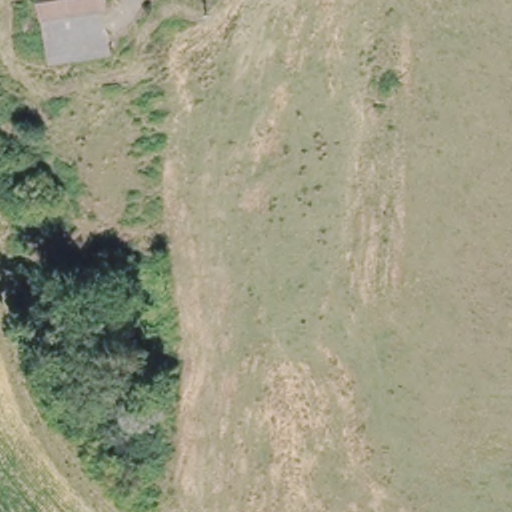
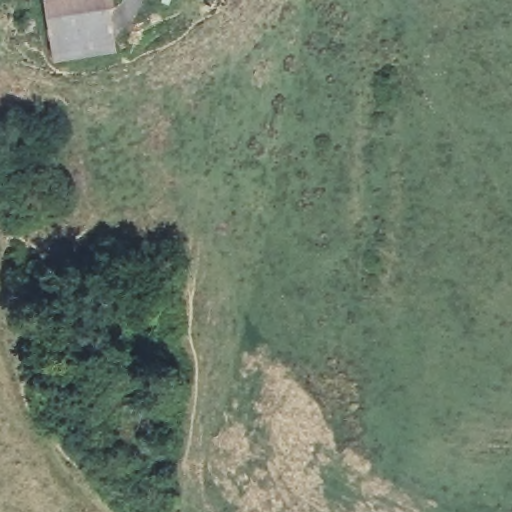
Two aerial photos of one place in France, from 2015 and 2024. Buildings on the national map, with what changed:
unchanged [(107,0),(107,3),(50,14),(40,15),(38,0),(107,0)]
unchanged [(120,45),(57,57),(50,14),(107,3),(115,1),(120,45)]

